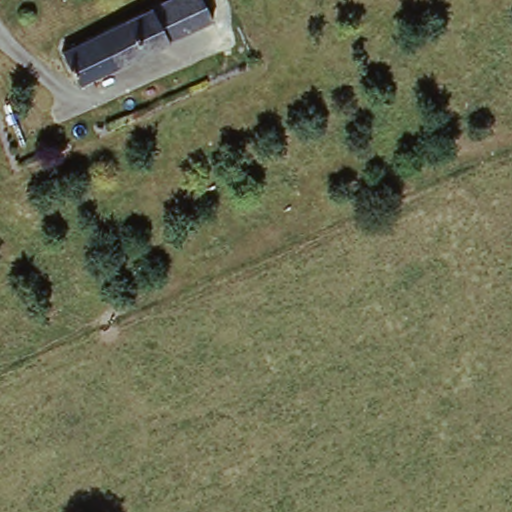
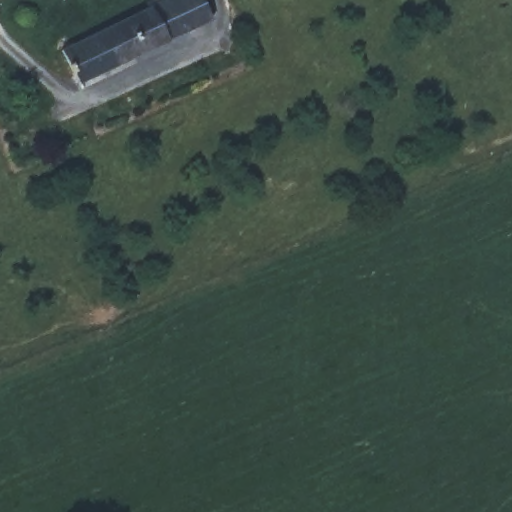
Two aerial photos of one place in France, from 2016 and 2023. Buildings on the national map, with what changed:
unchanged [(185,0),(206,0),(219,26),(88,90),(70,56),(185,0)]

